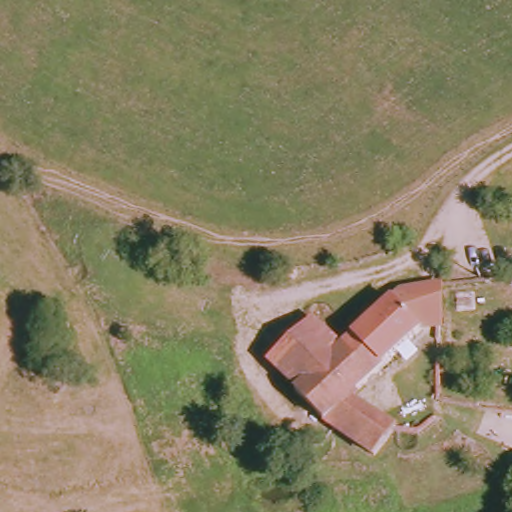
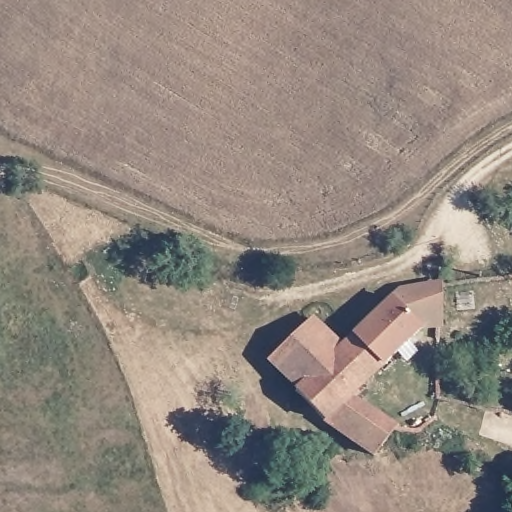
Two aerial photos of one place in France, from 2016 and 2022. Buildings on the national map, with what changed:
unchanged [(411,280),(442,279),(447,310),(428,330),(396,295),(411,280)]
unchanged [(345,349),(396,295),(428,330),(361,397),(403,422),(383,448),(331,419),(305,392),(310,386),(345,349)]
unchanged [(345,349),(310,386),(278,353),(313,312),(345,349)]

